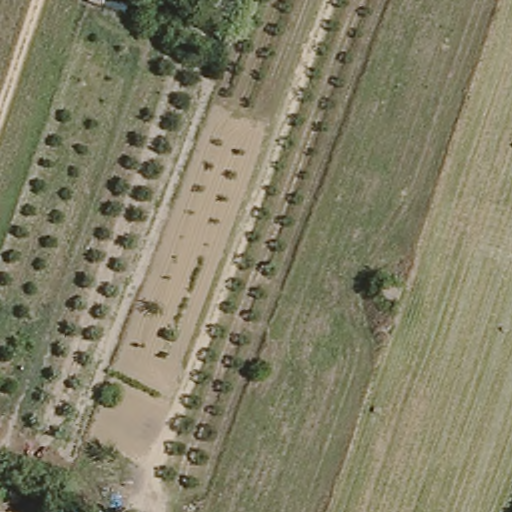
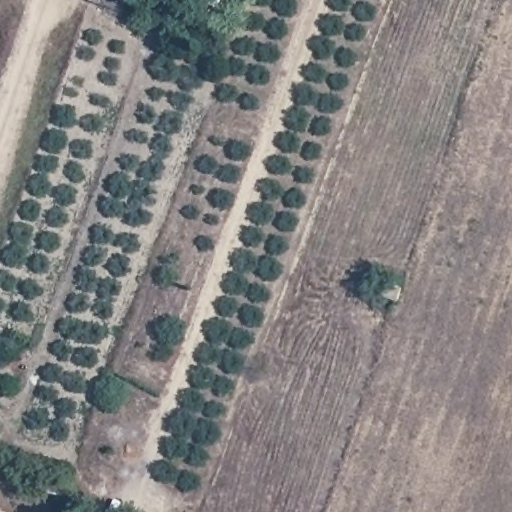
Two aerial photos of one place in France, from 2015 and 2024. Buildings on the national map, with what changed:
unchanged [(379,296),(383,284),(403,290),(399,302),(379,296)]
unchanged [(3,435),(0,445),(0,434),(3,435)]

